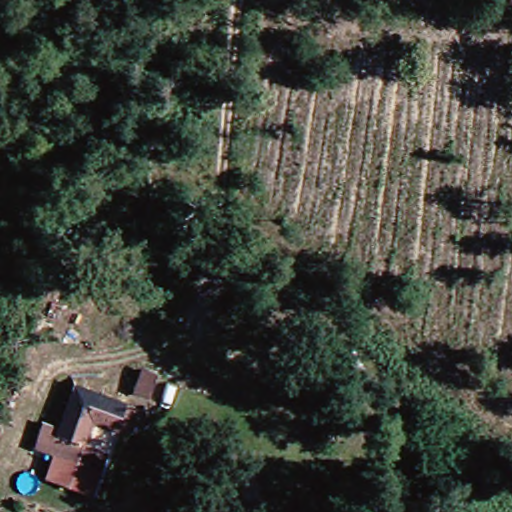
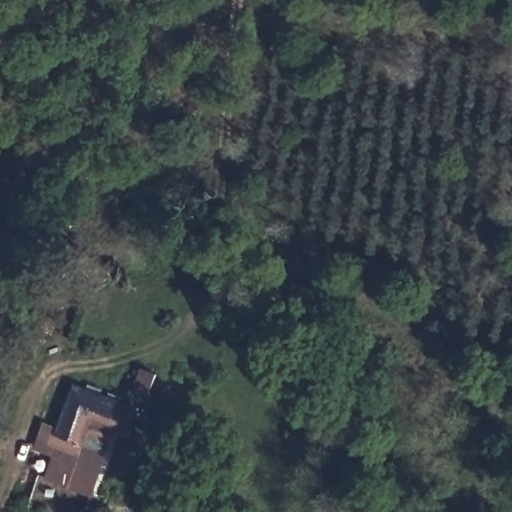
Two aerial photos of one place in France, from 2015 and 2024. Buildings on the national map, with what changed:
unchanged [(160,370),(155,394),(134,388),(139,365),(160,370)]
unchanged [(78,385),(130,401),(130,405),(143,407),(138,431),(120,429),(109,471),(42,453),(50,428),(66,430),(78,385)]

